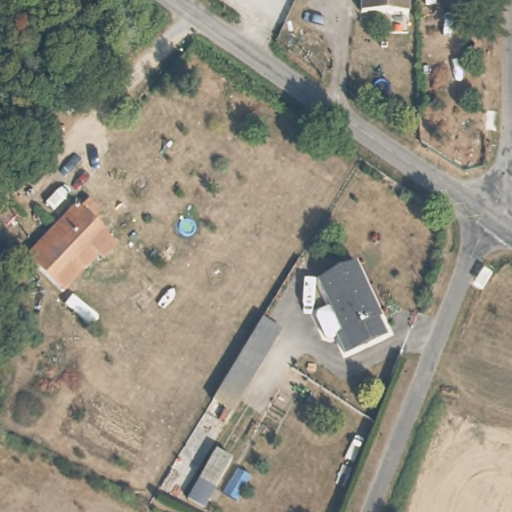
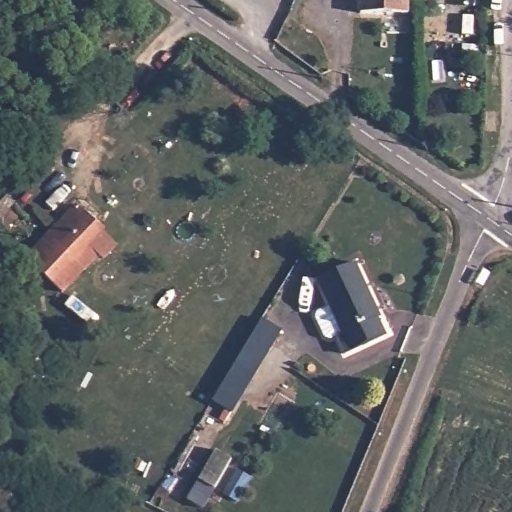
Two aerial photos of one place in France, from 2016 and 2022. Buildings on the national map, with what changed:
unchanged [(354,19),(354,0),(399,0),(397,20),(354,19)]
unchanged [(70,210),(88,226),(80,235),(90,242),(97,248),(103,253),(89,268),(84,263),(50,300),(16,269),(61,220),(70,210)]
unchanged [(351,265),(379,318),(375,320),(384,340),(345,361),(335,341),(324,344),(319,339),(312,321),(318,313),(325,310),(313,285),(351,265)]
unchanged [(274,332),(224,414),(204,403),(253,319),(274,332)]
unchanged [(210,452),(228,460),(213,493),(194,478),(210,452)]

